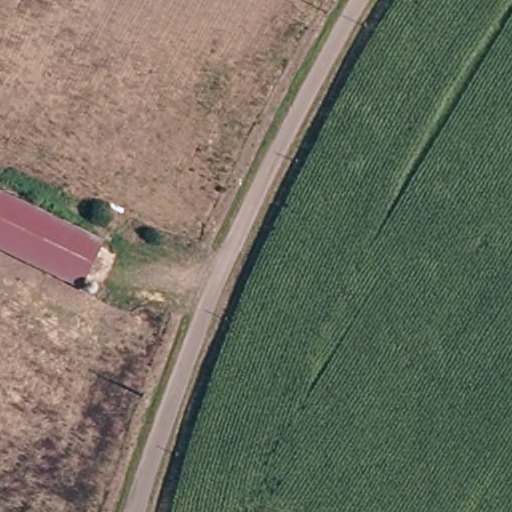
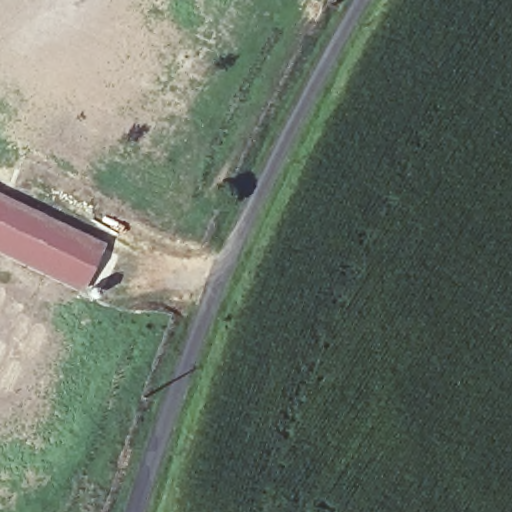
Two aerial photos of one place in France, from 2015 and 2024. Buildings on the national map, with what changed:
unchanged [(75,290),(0,253),(0,194),(99,242),(75,290)]

